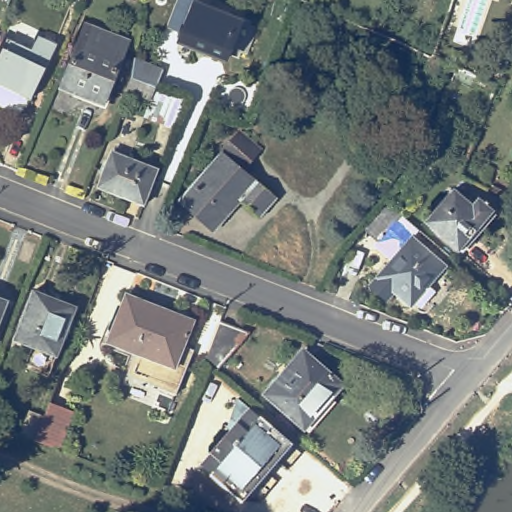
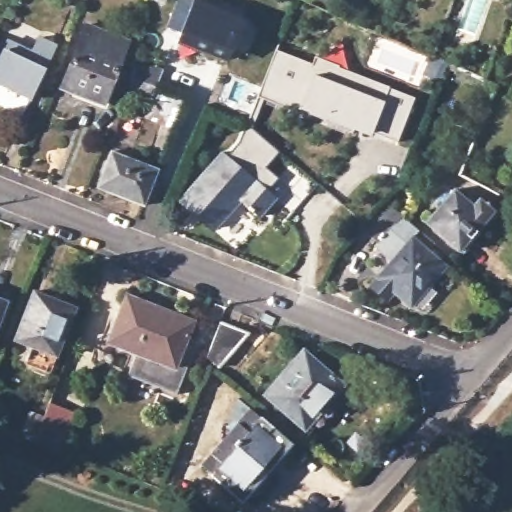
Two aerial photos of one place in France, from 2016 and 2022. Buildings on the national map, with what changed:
unchanged [(178,42),(194,0),(195,0),(241,18),(225,61),(178,42)]
unchanged [(0,84),(0,66),(20,25),(43,37),(50,24),(65,32),(39,89),(19,95),(0,84)]
unchanged [(66,80),(84,34),(126,50),(109,96),(66,80)]
new [(371,133),(370,137),(300,110),(255,96),(274,47),(310,61),(313,53),(413,96),(396,141),(371,133)]
unchanged [(131,79),(137,65),(162,75),(157,89),(131,79)]
unchanged [(152,118),(165,88),(189,99),(176,129),(152,118)]
unchanged [(181,203),(243,134),(262,151),(243,172),(275,202),(259,221),(241,205),(215,234),(181,203)]
unchanged [(97,186),(110,151),(159,170),(145,204),(97,186)]
unchanged [(426,221),(455,188),(473,204),(478,198),(493,212),(460,250),(426,221)]
unchanged [(361,226),(385,198),(403,213),(378,241),(361,226)]
unchanged [(394,290),(386,298),(370,284),(420,228),(453,258),(411,305),(394,290)]
unchanged [(30,359),(36,344),(19,337),(38,289),(80,305),(61,353),(55,369),(30,359)]
unchanged [(10,299),(0,326),(0,295),(10,299)]
unchanged [(198,323),(189,347),(200,352),(183,396),(134,377),(143,355),(114,343),(120,328),(131,297),(198,323)]
unchanged [(207,359),(220,324),(247,334),(219,368),(207,359)]
unchanged [(271,391),(305,350),(322,365),(327,359),(334,365),(332,368),(347,381),(310,425),(271,391)]
unchanged [(31,437),(45,399),(68,409),(54,446),(31,437)]
unchanged [(219,475),(210,467),(236,437),(245,427),(257,413),(297,447),(249,503),(217,477),(219,475)]

